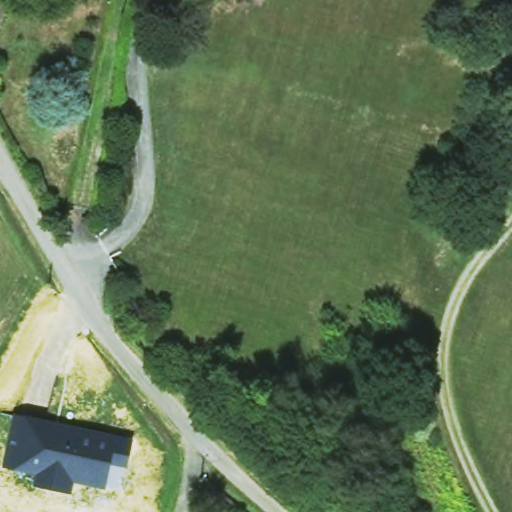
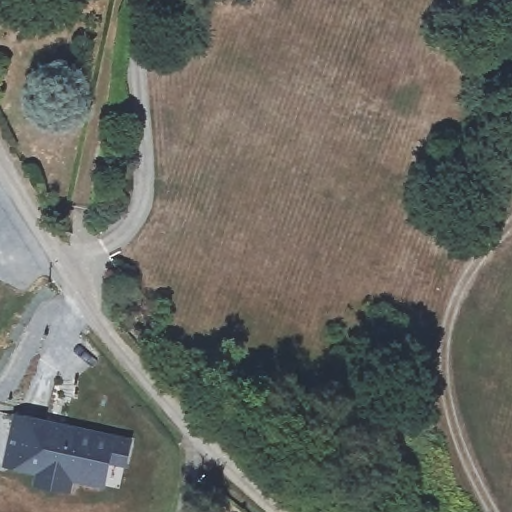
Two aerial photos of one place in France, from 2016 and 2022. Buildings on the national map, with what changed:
unchanged [(131,441),(126,463),(109,460),(105,480),(72,473),(71,480),(1,469),(10,425),(57,435),(59,428),(131,441)]

